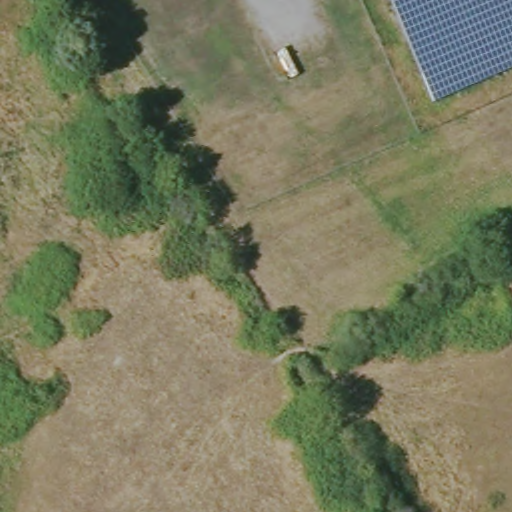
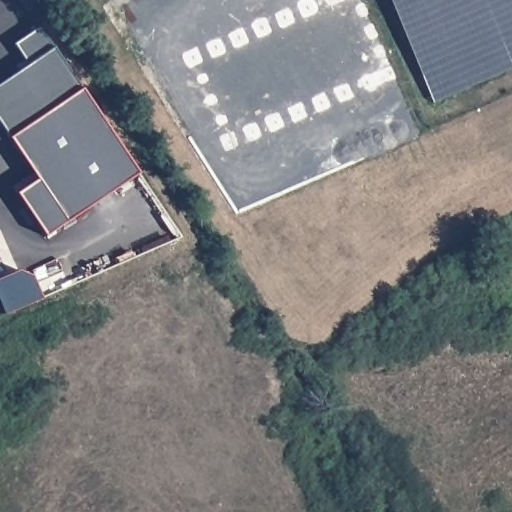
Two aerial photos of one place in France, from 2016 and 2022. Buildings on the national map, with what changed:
unchanged [(432,105),(388,0),(512,0),(512,71),(432,105)]
new [(52,48),(80,89),(137,172),(45,235),(17,193),(37,180),(10,137),(0,122),(0,84),(28,64),(15,44),(38,27),(52,48)]

